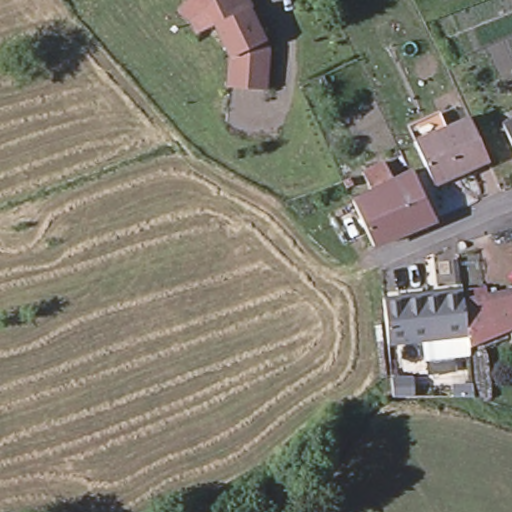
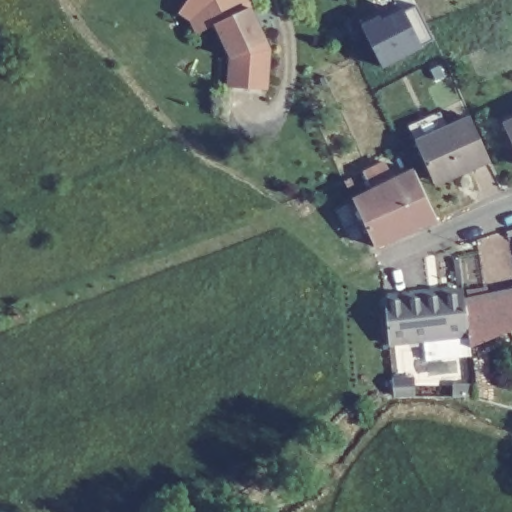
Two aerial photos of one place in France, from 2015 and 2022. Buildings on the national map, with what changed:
unchanged [(229,84),(231,53),(216,21),(214,22),(198,30),(191,16),(180,8),(186,0),(251,0),(253,4),(251,5),(257,19),(269,46),(266,86),(229,84)]
new [(359,25),(379,15),(381,19),(403,10),(416,4),(433,39),(421,48),(382,68),(359,25)]
unchanged [(443,189),(426,151),(419,138),(450,124),(456,136),(480,125),(501,169),(471,182),(446,194),(443,189)]
unchanged [(439,228),(379,253),(359,209),(376,200),(368,181),(390,171),(399,189),(416,181),(439,228)]
unchanged [(351,180),(354,187),(348,190),(344,184),(344,183),(351,180)]
unchanged [(389,342),(384,297),(422,293),(439,291),(462,289),(464,299),(512,291),(512,329),(471,346),(471,354),(426,358),(424,338),(389,342)]
unchanged [(474,387),(474,391),(452,393),(451,381),(473,379),(474,387)]
unchanged [(392,382),(413,381),(414,397),(394,396),(392,382)]

